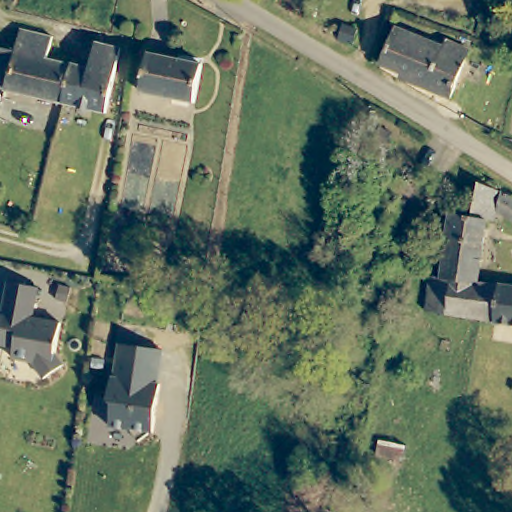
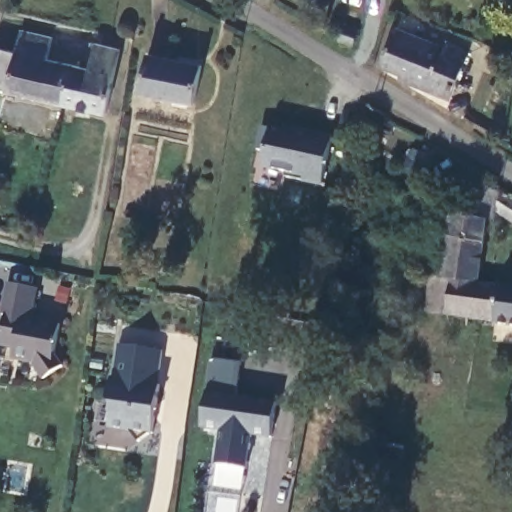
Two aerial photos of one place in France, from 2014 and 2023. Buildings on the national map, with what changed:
unchanged [(359,28),(352,49),(342,40),(346,22),(359,28)]
unchanged [(49,34),(44,55),(87,65),(93,44),(119,50),(103,114),(0,88),(0,47),(9,49),(16,26),(49,34)]
unchanged [(393,26),(444,46),(446,43),(466,49),(452,84),(462,88),(457,103),(402,82),(404,79),(377,68),(393,26)]
unchanged [(149,55),(200,68),(193,105),(139,93),(149,55)]
new [(264,127),(295,133),(295,128),(334,135),(325,184),(287,177),(288,172),(264,167),(267,152),(259,150),(264,127)]
unchanged [(471,176),(467,189),(436,180),(444,154),(461,159),(457,172),(471,176)]
unchanged [(499,214),(494,221),(487,219),(482,284),(438,277),(448,214),(472,218),(478,184),(509,191),(512,193),(512,221),(499,214)]
unchanged [(503,287),(503,289),(497,323),(424,313),(431,275),(434,276),(438,277),(482,284),(503,287)]
unchanged [(0,312),(0,299),(4,280),(34,287),(29,317),(58,323),(52,352),(59,364),(40,377),(30,359),(10,355),(12,345),(0,342),(0,320),(1,312),(0,312)]
unchanged [(512,289),(512,324),(497,323),(503,289),(512,289)]
unchanged [(113,427),(116,405),(112,399),(115,379),(118,379),(123,344),(168,352),(163,384),(165,384),(162,406),(159,408),(159,414),(160,417),(158,434),(155,434),(144,442),(134,430),(113,427)]
new [(236,392),(276,399),(272,439),(253,437),(248,469),(215,466),(220,429),(199,427),(208,358),(243,363),(236,392)]

